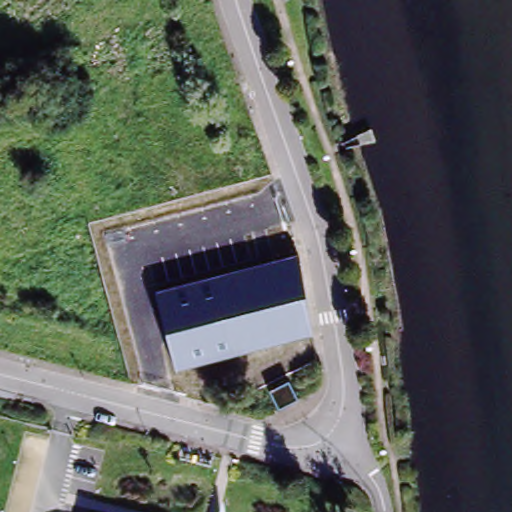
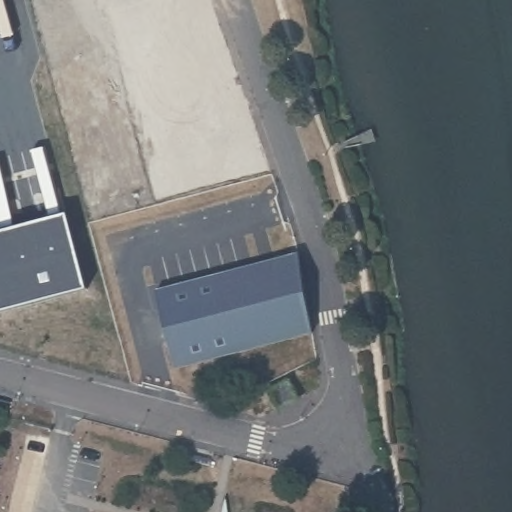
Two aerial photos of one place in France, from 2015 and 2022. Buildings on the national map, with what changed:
new [(72,223),(92,300),(0,324),(0,242),(72,223)]
unchanged [(176,370),(155,290),(298,253),(313,335),(176,370)]
unchanged [(298,401),(278,411),(271,396),(291,386),(298,401)]
unchanged [(226,498),(228,512),(216,512),(219,499),(226,498)]

